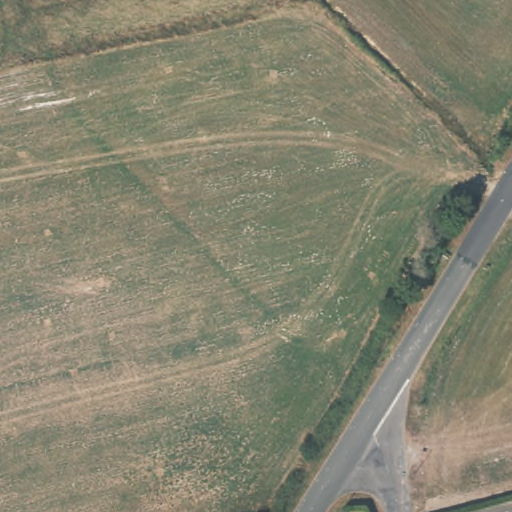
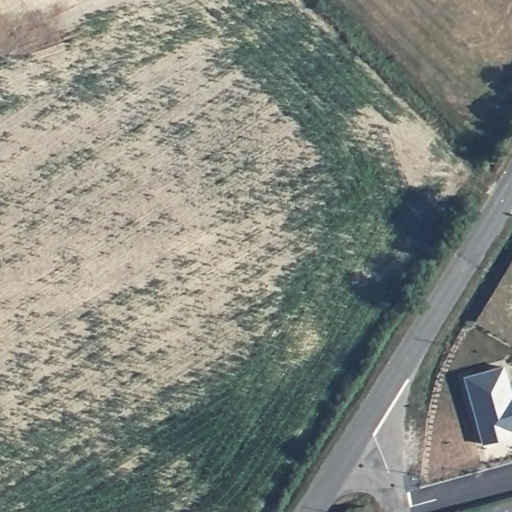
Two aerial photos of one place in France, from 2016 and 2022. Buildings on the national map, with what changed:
new [(512,436),(480,444),(460,376),(502,364),(512,393),(512,431),(510,431),(512,436)]

